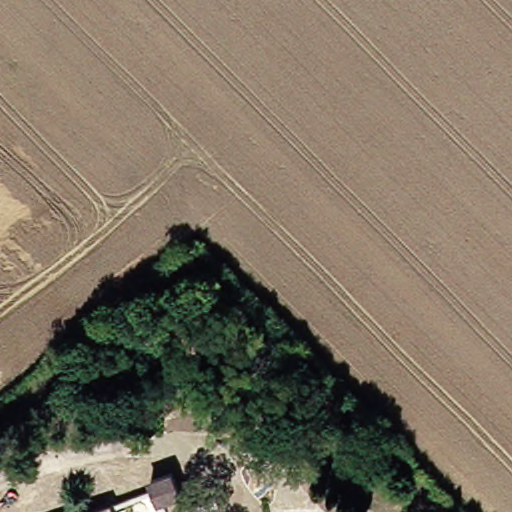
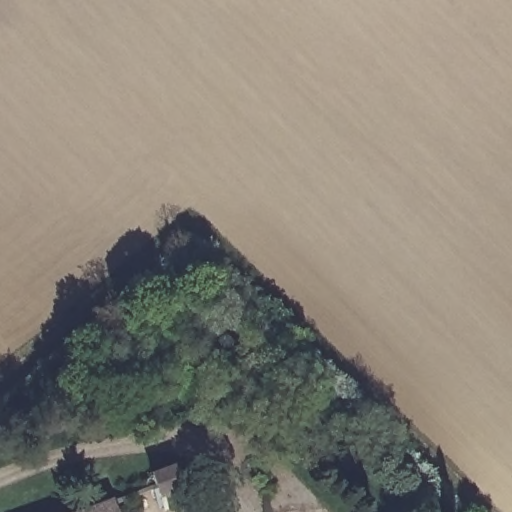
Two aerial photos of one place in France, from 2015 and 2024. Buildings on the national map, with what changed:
unchanged [(184,488),(160,498),(156,488),(152,478),(174,469),(184,488)]
unchanged [(108,512),(67,512),(103,499),(108,512)]

